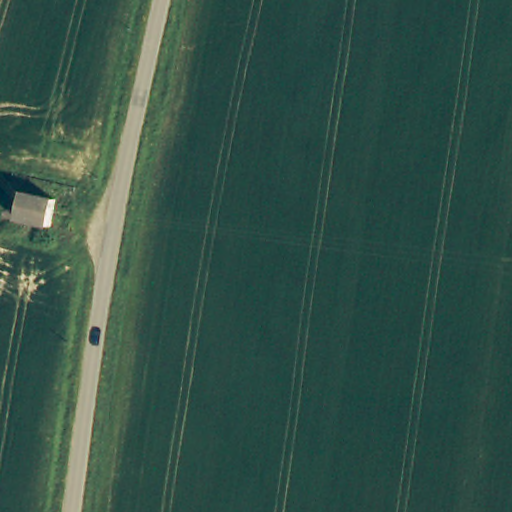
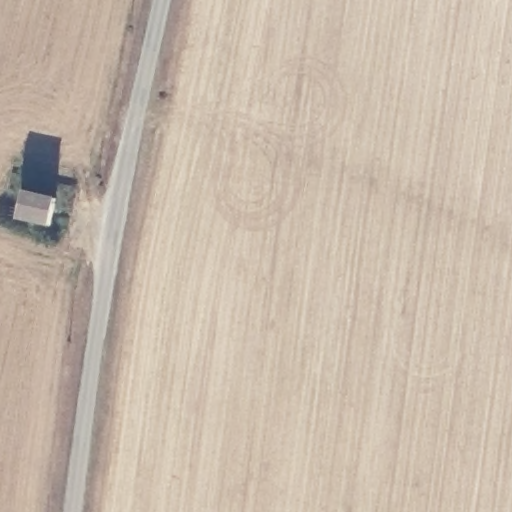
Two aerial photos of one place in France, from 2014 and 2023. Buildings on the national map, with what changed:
unchanged [(55,199),(49,225),(18,218),(24,192),(55,199)]

